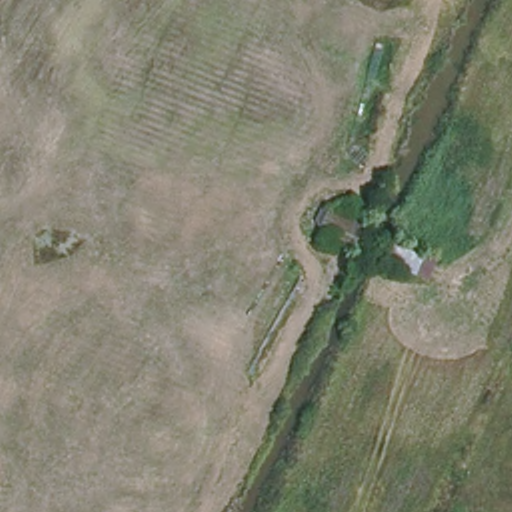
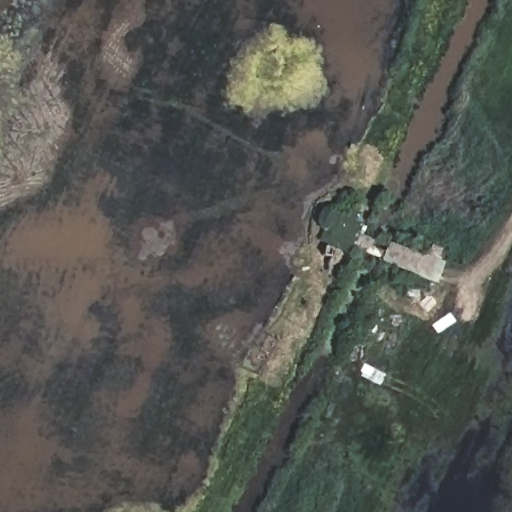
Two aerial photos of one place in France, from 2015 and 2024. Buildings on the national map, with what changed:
unchanged [(322,208),(361,225),(349,250),(311,233),(322,208)]

